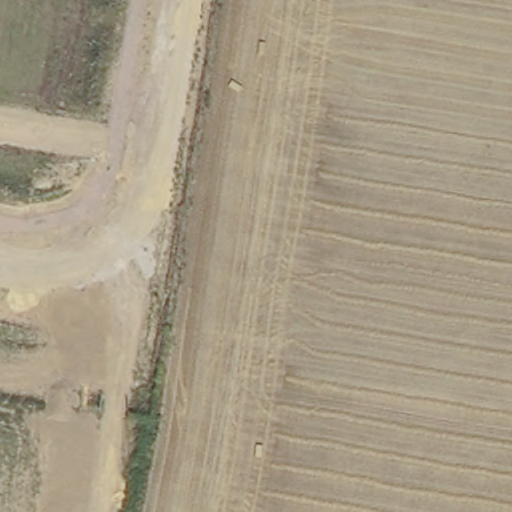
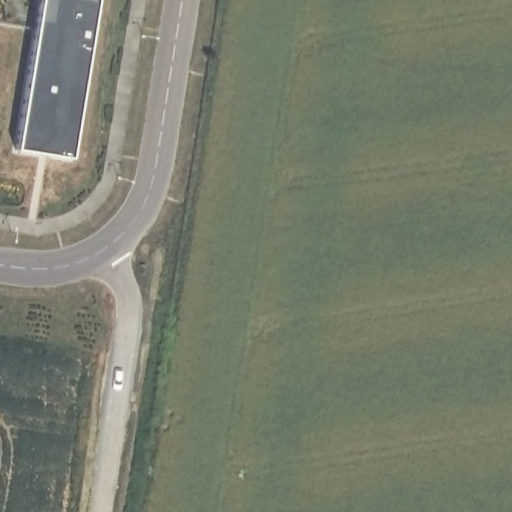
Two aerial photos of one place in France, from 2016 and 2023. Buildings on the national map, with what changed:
new [(71,162),(17,152),(41,0),(98,0),(71,162)]

